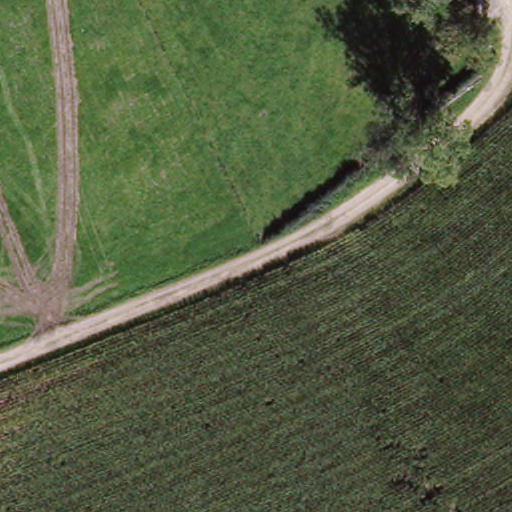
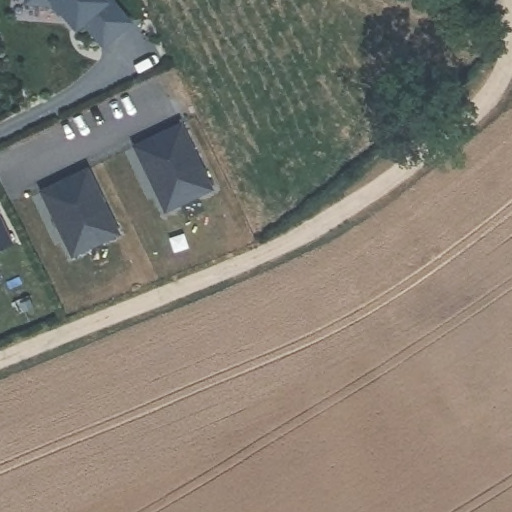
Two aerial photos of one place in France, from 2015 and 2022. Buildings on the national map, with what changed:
new [(131,21),(101,47),(82,26),(76,30),(58,10),(57,14),(49,5),(25,3),(25,0),(113,0),(131,21)]
new [(184,123),(214,188),(168,209),(138,145),(184,123)]
new [(85,169),(115,234),(70,256),(39,191),(85,169)]

